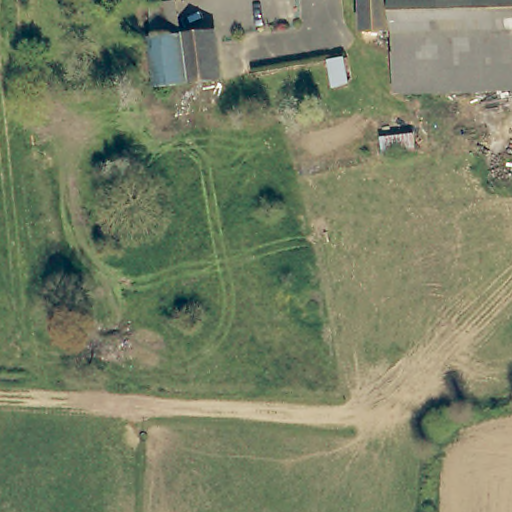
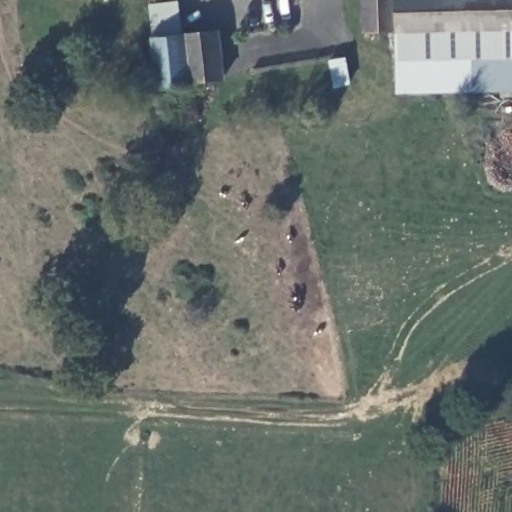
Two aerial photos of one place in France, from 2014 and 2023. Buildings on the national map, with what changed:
unchanged [(393,33),(363,33),(364,0),(394,0),(393,33)]
unchanged [(394,0),(512,0),(512,31),(493,31),(420,32),(393,33),(394,0)]
unchanged [(155,37),(157,37),(155,2),(164,2),(181,1),(185,36),(189,84),(160,86),(155,37)]
unchanged [(393,88),(393,33),(420,32),(493,31),(512,31),(512,95),(424,93),(393,91),(393,88)]
unchanged [(220,34),(224,82),(201,83),(189,84),(185,36),(220,34)]
unchanged [(333,91),(328,67),(344,63),(350,87),(333,91)]

